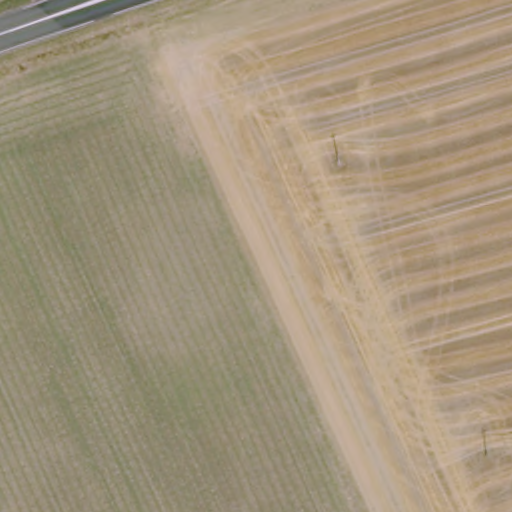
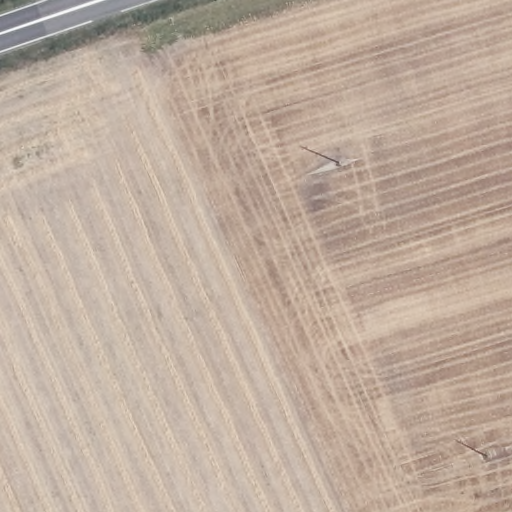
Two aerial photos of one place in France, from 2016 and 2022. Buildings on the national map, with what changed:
[]

